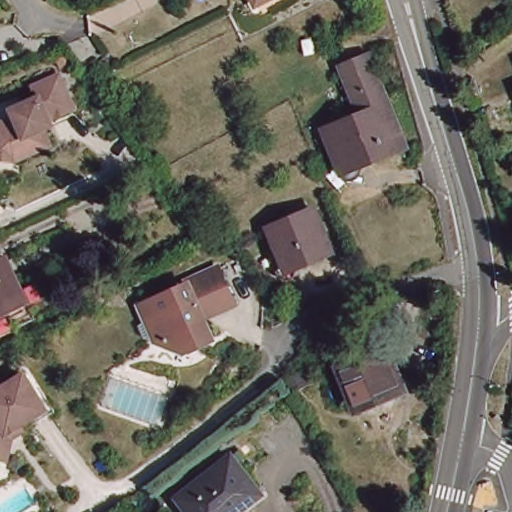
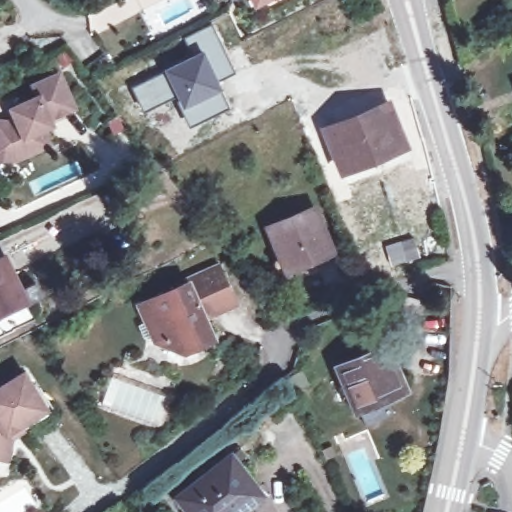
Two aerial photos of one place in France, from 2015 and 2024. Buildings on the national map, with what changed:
unchanged [(249,0),(256,0),(250,3),(249,0)]
new [(212,23),(236,72),(220,80),(202,49),(190,54),(182,36),(212,23)]
new [(190,54),(202,49),(220,80),(230,108),(190,127),(175,96),(163,69),(190,54)]
unchanged [(327,149),(320,130),(356,115),(338,71),(336,65),(363,54),(364,57),(391,123),(400,144),(393,148),(345,168),(336,172),(327,149)]
unchanged [(46,123),(53,138),(20,154),(0,151),(0,116),(12,117),(21,113),(16,103),(42,90),(38,80),(62,69),(78,101),(53,113),(55,118),(46,123)]
new [(163,69),(175,96),(143,111),(131,86),(163,69)]
unchanged [(326,228),(320,230),(327,249),(288,265),(272,229),(318,209),(326,228)]
unchanged [(5,257),(28,304),(9,313),(0,317),(0,259),(5,257)]
unchanged [(210,318),(218,334),(188,349),(161,339),(145,303),(193,281),(192,279),(225,264),(238,295),(242,303),(210,318)]
unchanged [(372,307),(397,298),(403,312),(378,321),(372,307)]
unchanged [(380,334),(360,342),(355,330),(375,322),(380,334)]
unchanged [(402,388),(359,406),(342,367),(386,349),(402,388)]
unchanged [(15,440),(10,461),(0,458),(0,393),(27,376),(50,411),(25,426),(28,432),(15,440)]
unchanged [(178,497),(230,456),(260,494),(237,512),(190,512),(178,497)]

